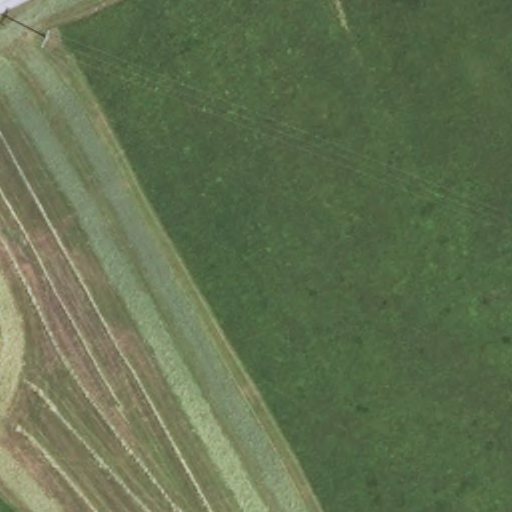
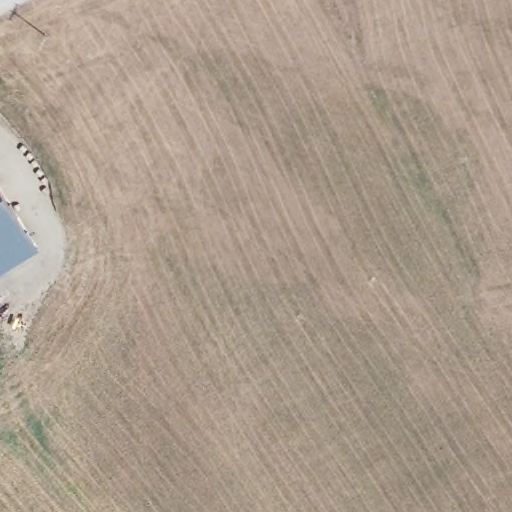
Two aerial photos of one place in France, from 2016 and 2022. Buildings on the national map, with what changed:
new [(0,272),(0,187),(39,249),(0,272)]

